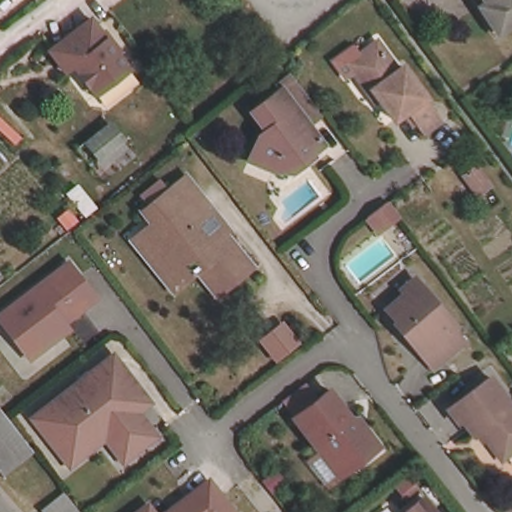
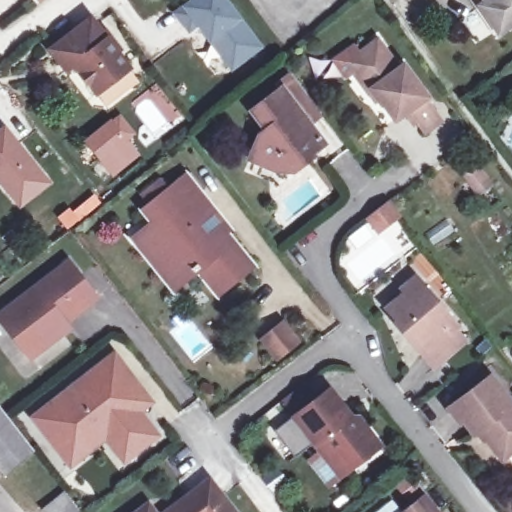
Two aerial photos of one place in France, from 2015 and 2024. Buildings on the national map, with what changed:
new [(229,0),(266,46),(230,72),(198,28),(189,35),(170,12),(186,0),(229,0)]
unchanged [(493,2),(491,0),(512,0),(512,28),(505,33),(486,6),(493,2)]
unchanged [(59,66),(48,51),(84,22),(89,18),(105,39),(128,69),(94,95),(72,66),(64,72),(59,66)]
unchanged [(399,120),(384,101),(379,105),(371,94),(356,72),(351,64),(363,55),(381,42),(401,67),(407,63),(432,96),(428,98),(444,120),(428,132),(420,122),(414,127),(405,116),(399,120)]
unchanged [(281,89),(294,79),(326,120),(313,130),(327,149),(306,165),(309,168),(296,178),(279,171),(278,176),(251,165),(263,139),(269,134),(256,115),(284,93),(281,89)]
unchanged [(96,150),(84,135),(106,116),(126,140),(115,149),(103,159),(96,150)]
new [(6,129),(49,183),(23,205),(4,182),(0,185),(0,134),(6,129)]
unchanged [(496,179),(476,196),(463,173),(483,161),(496,179)]
unchanged [(193,179),(221,213),(218,217),(259,270),(225,297),(207,274),(183,293),(151,254),(141,241),(166,221),(156,209),(193,179)]
unchanged [(378,227),(367,213),(387,198),(393,205),(398,212),(378,227)]
unchanged [(64,333),(31,358),(0,316),(0,315),(71,261),(98,298),(66,322),(70,328),(64,333)]
unchanged [(0,280),(0,274),(3,277),(0,280)]
unchanged [(396,326),(401,322),(390,308),(408,293),(404,290),(418,279),(426,287),(459,328),(457,330),(468,345),(436,371),(424,356),(427,354),(416,340),(411,344),(396,326)]
new [(284,323),(301,343),(280,359),(264,339),(284,323)]
unchanged [(108,439),(101,431),(85,443),(92,451),(73,466),(35,420),(95,372),(105,364),(128,374),(151,403),(139,412),(156,433),(151,436),(151,442),(141,450),(125,462),(108,439)]
unchanged [(475,437),(454,408),(493,378),(512,404),(512,455),(504,461),(489,440),(485,443),(479,435),(475,437)]
unchanged [(332,449),(304,411),(341,384),(365,417),(370,414),(380,427),(388,438),(392,442),(376,453),(354,469),(339,481),(321,457),(332,449)]
unchanged [(34,452),(4,475),(0,470),(0,408),(34,452)]
unchanged [(188,499),(212,481),(223,495),(236,512),(172,512),(188,499)]
unchanged [(83,512),(50,512),(70,496),(83,512)]
unchanged [(425,497),(436,512),(405,512),(425,497)]
unchanged [(151,506),(155,512),(143,512),(151,506)]

